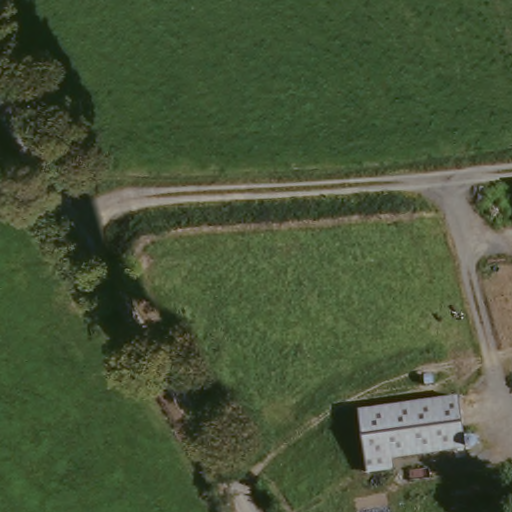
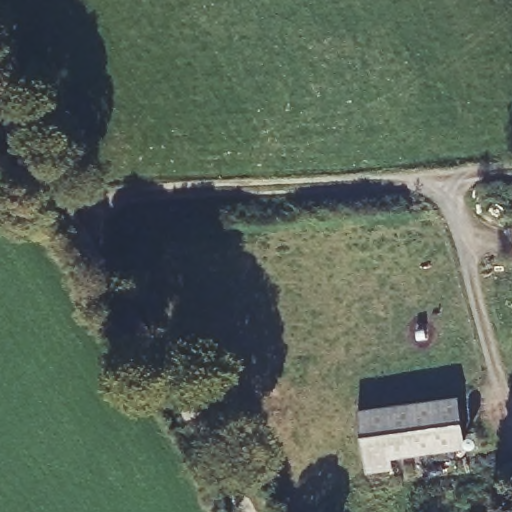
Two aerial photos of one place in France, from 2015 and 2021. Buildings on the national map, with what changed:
unchanged [(460,395),(465,447),(364,461),(358,409),(460,395)]

